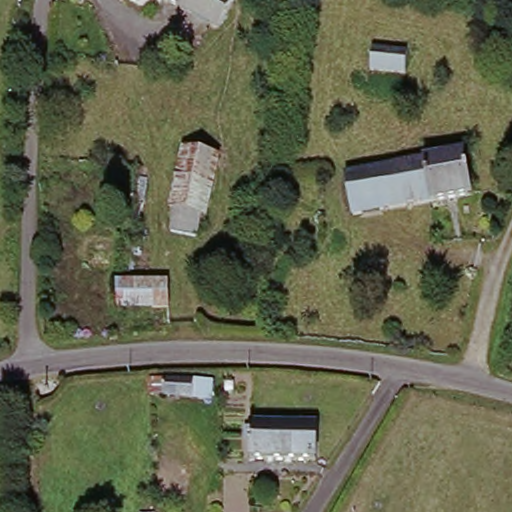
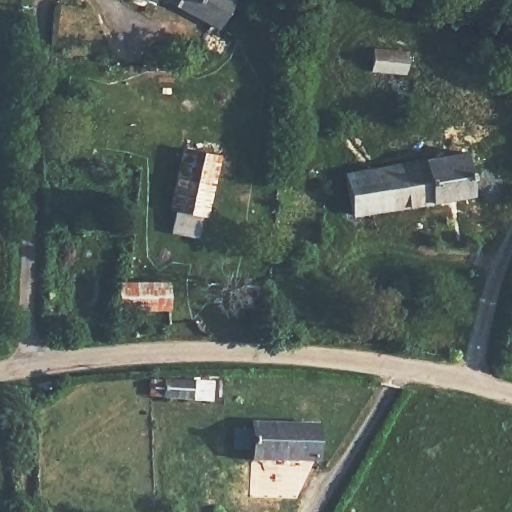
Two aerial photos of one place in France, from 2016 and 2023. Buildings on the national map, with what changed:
unchanged [(119,0),(147,0),(142,11),(119,0)]
unchanged [(193,21),(152,0),(239,0),(221,35),(193,21)]
unchanged [(412,57),(412,84),(376,84),(374,57),(412,57)]
unchanged [(103,152),(105,183),(82,182),(80,154),(103,152)]
unchanged [(184,246),(183,223),(180,223),(180,157),(216,157),(216,224),(212,224),(212,245),(184,246)]
unchanged [(352,214),(350,172),(475,167),(477,207),(352,214)]
unchanged [(125,316),(125,287),(170,291),(169,316),(125,316)]
unchanged [(218,405),(159,409),(157,385),(215,382),(218,405)]
unchanged [(321,432),(320,470),(257,469),(258,431),(321,432)]

